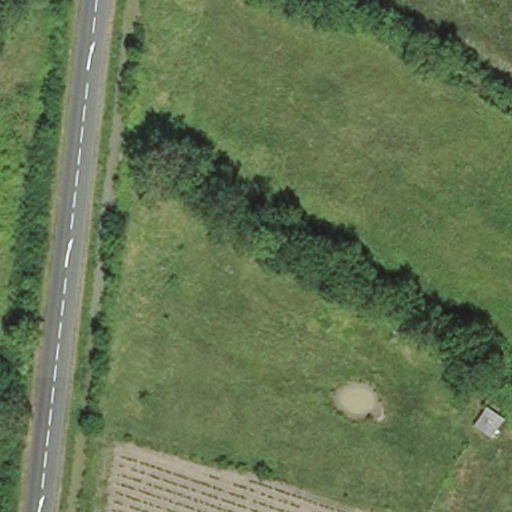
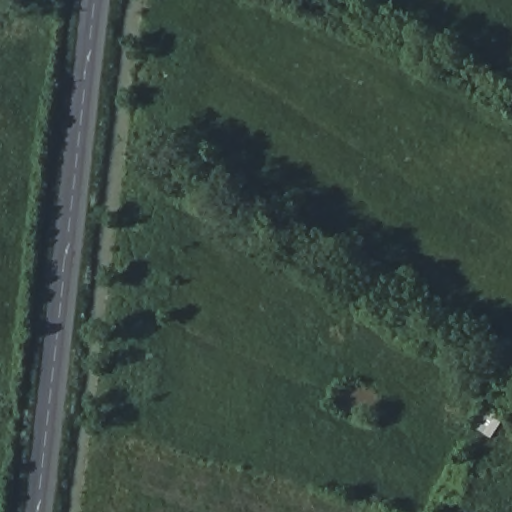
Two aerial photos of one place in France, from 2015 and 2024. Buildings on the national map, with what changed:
unchanged [(491,442),(472,428),(486,405),(507,420),(491,442)]

